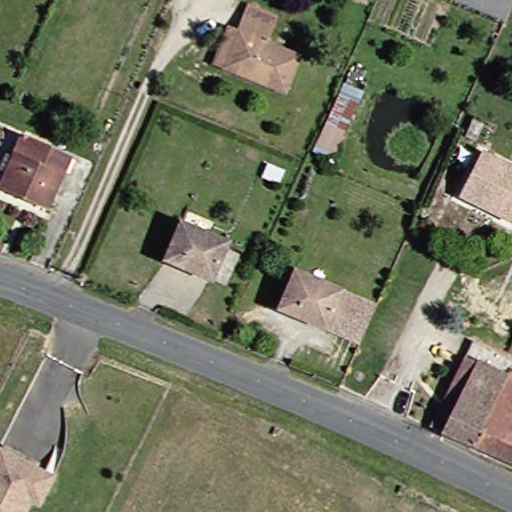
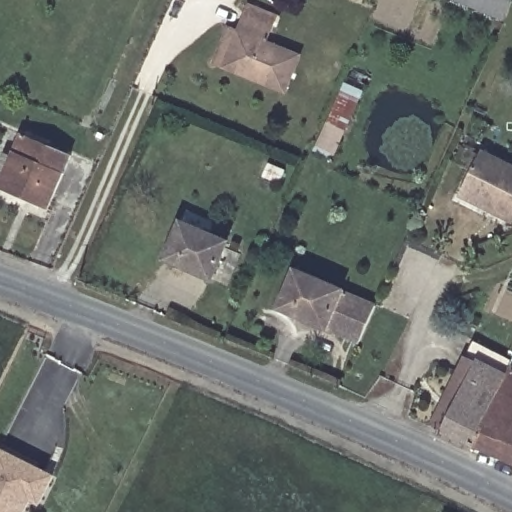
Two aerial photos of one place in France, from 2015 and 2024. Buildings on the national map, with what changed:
unchanged [(455,0),(512,0),(512,18),(511,21),(455,0)]
unchanged [(232,60),(249,22),(257,25),(264,10),(287,18),(276,45),(310,60),(292,100),(261,86),(228,71),(232,60)]
unchanged [(341,161),(319,152),(344,91),(365,100),(341,161)]
unchanged [(79,155),(54,207),(2,186),(26,130),(79,155)]
unchanged [(512,164),(512,217),(466,197),(484,152),(512,164)]
unchanged [(233,243),(219,279),(171,259),(188,223),(233,243)]
unchanged [(346,337),(265,303),(281,266),(362,301),(346,337)]
unchanged [(482,446),(448,433),(433,426),(461,368),(471,351),(493,362),(512,366),(512,459),(482,446)]
unchanged [(51,470),(62,475),(48,503),(37,498),(31,512),(0,512),(0,458),(5,447),(51,470)]

